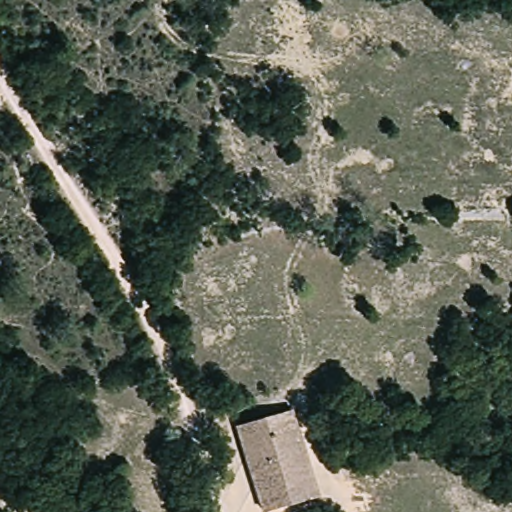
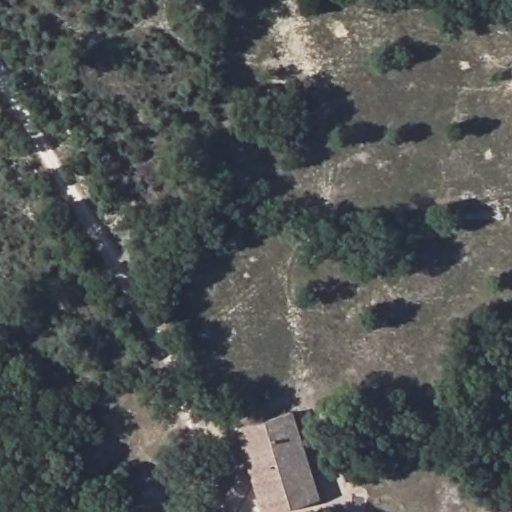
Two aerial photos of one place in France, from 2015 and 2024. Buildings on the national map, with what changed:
unchanged [(261,512),(236,427),(289,415),(311,503),(266,512),(261,512)]

